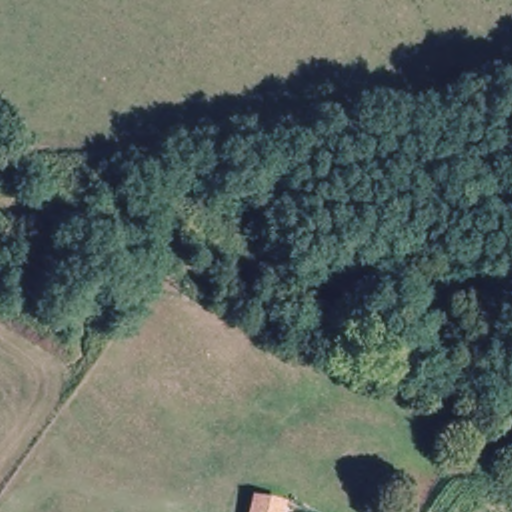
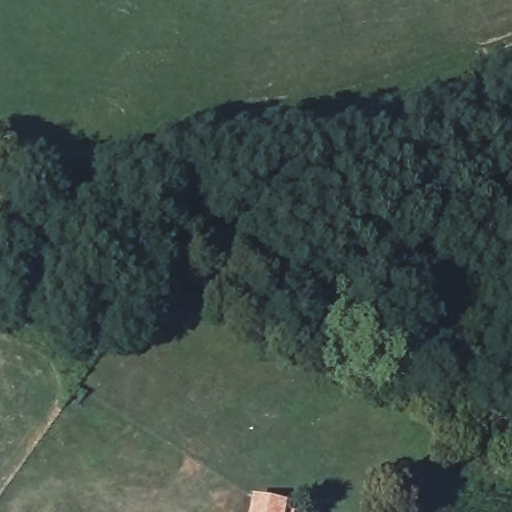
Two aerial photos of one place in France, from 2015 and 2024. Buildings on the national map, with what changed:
unchanged [(252,512),(264,482),(292,492),(284,512),(252,512)]

